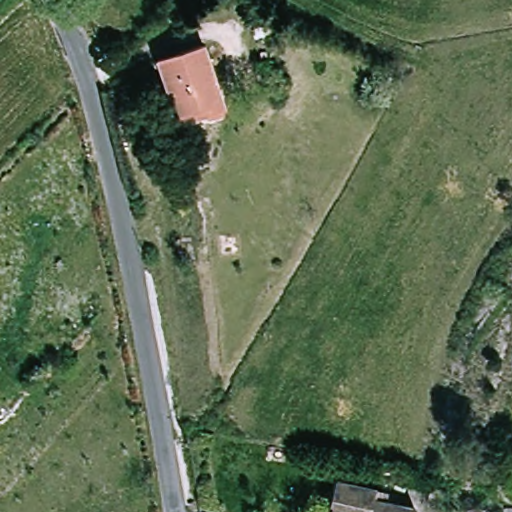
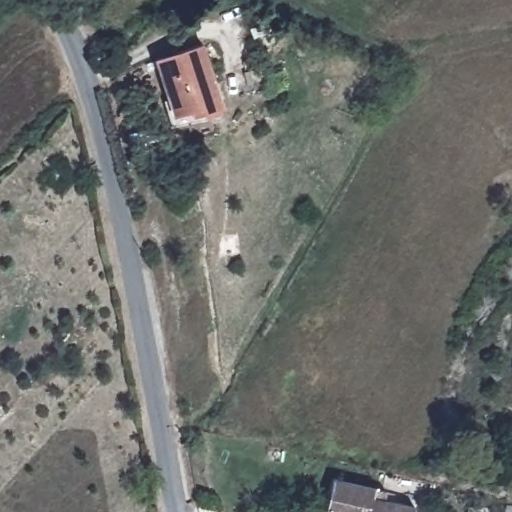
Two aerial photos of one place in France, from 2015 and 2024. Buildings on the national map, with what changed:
unchanged [(195,114),(193,108),(174,114),(156,59),(203,44),(223,105),(195,114)]
unchanged [(334,478),(373,487),(373,489),(384,492),(383,500),(414,506),(412,512),(326,512),(334,478)]
unchanged [(512,505),(512,506),(512,512),(510,512),(512,505)]
unchanged [(467,507),(487,507),(487,512),(467,512),(467,507)]

